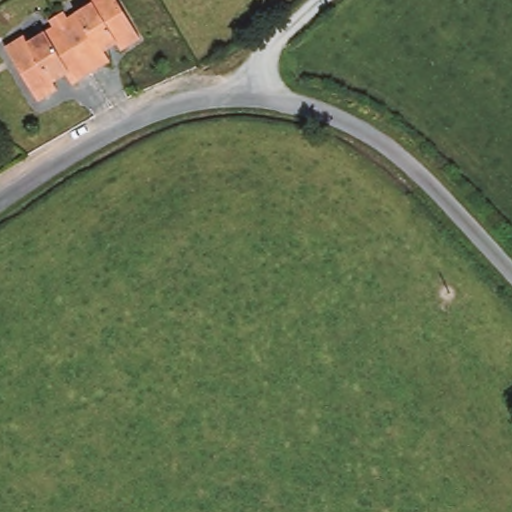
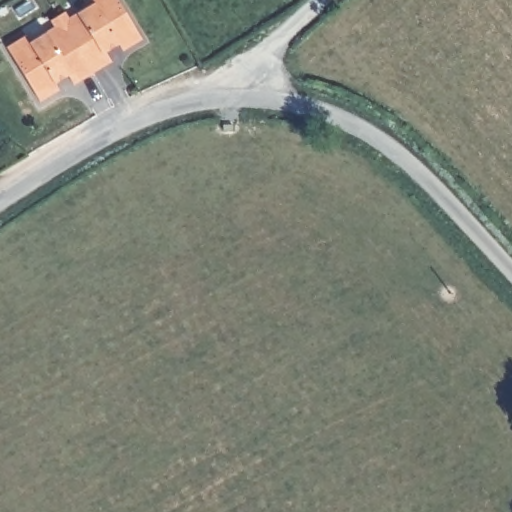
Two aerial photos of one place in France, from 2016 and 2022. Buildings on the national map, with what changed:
unchanged [(96,0),(121,0),(143,35),(122,49),(117,39),(106,46),(72,14),(96,0)]
unchanged [(115,60),(75,85),(67,71),(54,78),(61,87),(41,100),(7,45),(25,35),(29,41),(56,25),(51,18),(66,9),(72,14),(106,46),(115,60)]

